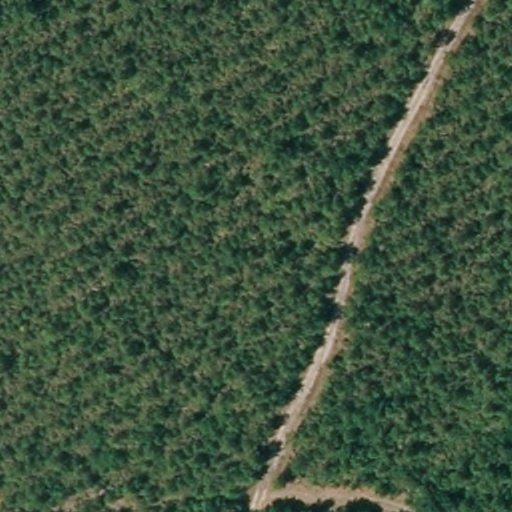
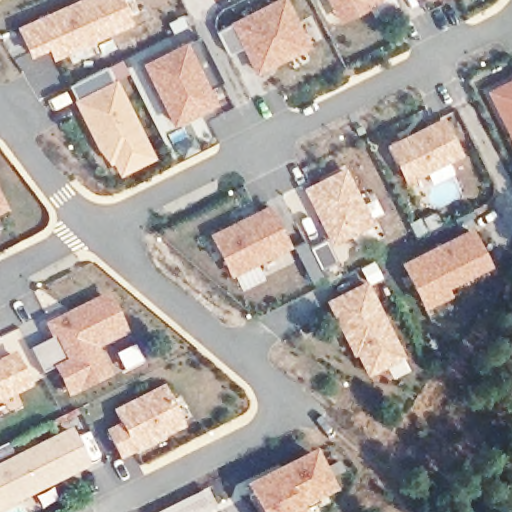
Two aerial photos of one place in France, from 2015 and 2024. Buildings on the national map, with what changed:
new [(31,57),(18,28),(81,0),(122,0),(134,26),(54,61),(47,49),(31,57)]
new [(286,0),(310,47),(256,75),(243,47),(228,55),(217,33),(232,26),(231,24),(277,0),(286,0)]
new [(373,7),(339,22),(328,0),(376,0),(371,2),(373,7)]
new [(172,126),(142,65),(187,42),(189,47),(200,40),(221,82),(208,89),(217,104),(172,126)]
new [(79,100),(72,87),(107,69),(114,82),(117,81),(155,159),(121,176),(114,163),(111,164),(75,102),(79,100)]
new [(489,92),(512,80),(512,141),(489,92)]
new [(388,146),(443,118),(462,155),(407,183),(388,146)]
new [(303,189),(347,167),(373,225),(332,245),(303,189)]
new [(0,213),(0,198),(6,211),(0,213)]
new [(211,236),(270,206),(291,247),(231,277),(211,236)]
new [(425,307),(401,263),(472,227),(489,263),(443,287),(448,296),(425,307)]
new [(357,353),(353,355),(327,302),(367,281),(405,358),(367,376),(357,353)]
new [(54,366),(44,371),(32,348),(52,337),(45,324),(109,293),(127,334),(97,350),(110,377),(69,397),(54,366)]
new [(31,387),(0,402),(0,360),(15,352),(31,387)]
new [(121,461),(107,432),(121,424),(114,411),(164,386),(185,429),(121,461)]
new [(90,467),(0,511),(0,464),(71,428),(90,467)]
new [(251,495),(288,475),(286,468),(312,455),(328,490),(292,507),(295,512),(259,512),(251,495)]

